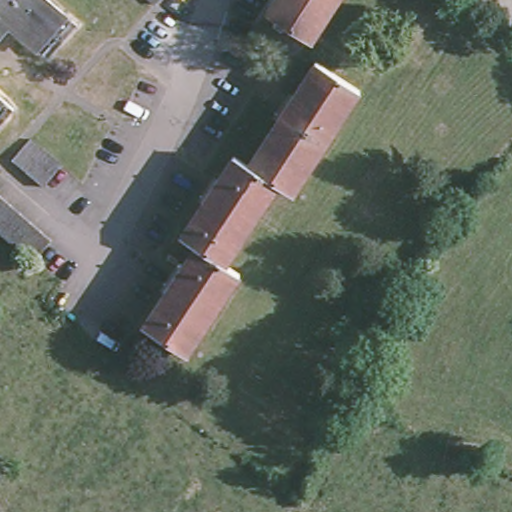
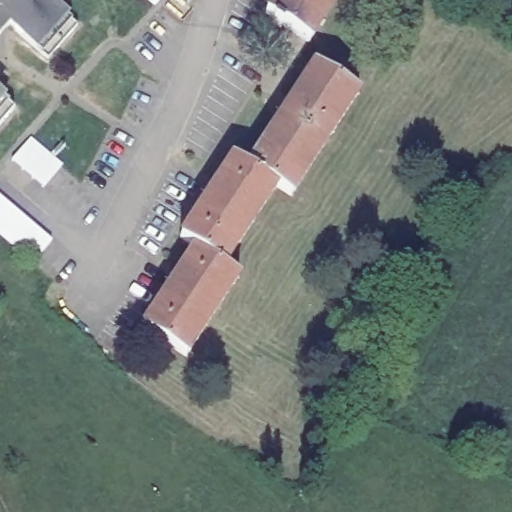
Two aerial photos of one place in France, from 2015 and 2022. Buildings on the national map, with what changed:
unchanged [(79,26),(50,60),(9,25),(0,35),(0,0),(48,0),(79,26)]
unchanged [(157,5),(150,0),(161,0),(157,5)]
unchanged [(310,42),(267,15),(277,0),(337,0),(310,42)]
unchanged [(317,64),(360,92),(292,197),(278,187),(249,168),(317,64)]
unchanged [(15,111),(0,129),(0,98),(15,111)]
unchanged [(65,167),(47,186),(16,160),(34,141),(65,167)]
unchanged [(278,187),(226,268),(198,249),(183,240),(234,159),(249,168),(278,187)]
unchanged [(0,232),(0,193),(53,239),(35,261),(0,232)]
unchanged [(226,268),(240,277),(188,358),(145,330),(198,249),(226,268)]

